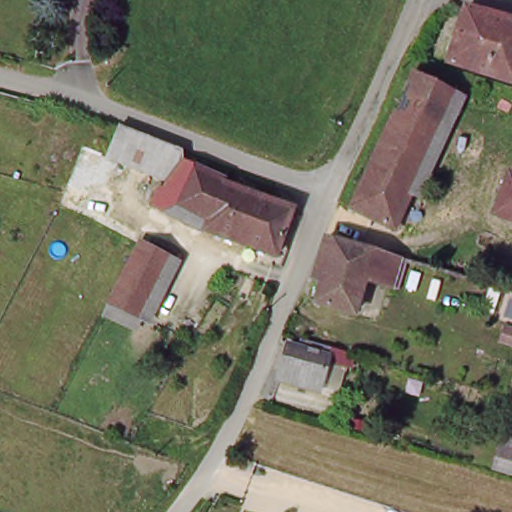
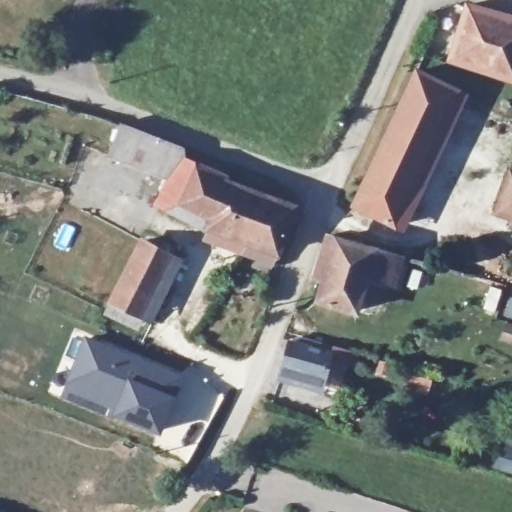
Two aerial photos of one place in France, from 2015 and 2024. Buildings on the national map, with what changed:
unchanged [(474,10),(512,25),(512,77),(455,58),(474,10)]
unchanged [(389,223),(355,206),(422,78),(453,93),(389,223)]
unchanged [(167,175),(109,154),(121,120),(181,140),(174,156),(167,175)]
unchanged [(224,179),(223,185),(262,200),(239,242),(196,224),(201,212),(159,196),(167,175),(174,156),(224,179)]
unchanged [(498,212),(512,177),(512,218),(498,212)]
unchanged [(262,200),(288,210),(268,255),(239,242),(262,200)]
unchanged [(329,241),(403,263),(392,295),(364,286),(318,272),(329,241)]
unchanged [(144,245),(175,257),(146,323),(115,312),(144,245)]
unchanged [(354,317),(306,302),(318,272),(364,286),(354,317)]
new [(82,334),(128,350),(181,372),(191,362),(231,385),(194,450),(153,445),(156,434),(58,396),(82,334)]
unchanged [(273,379),(284,346),(297,351),(301,338),(331,348),(314,394),(273,379)]
unchanged [(504,464),(509,446),(512,447),(512,467),(504,464)]

